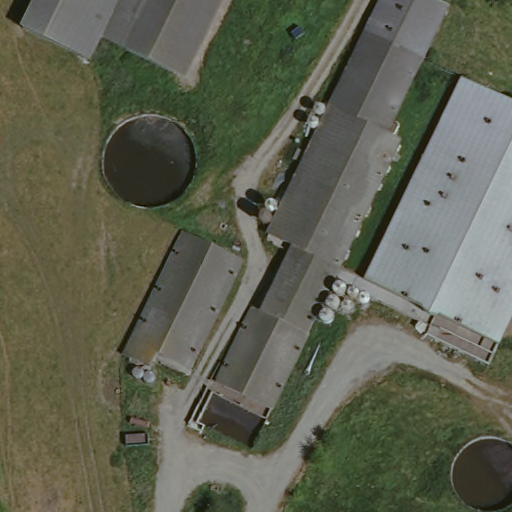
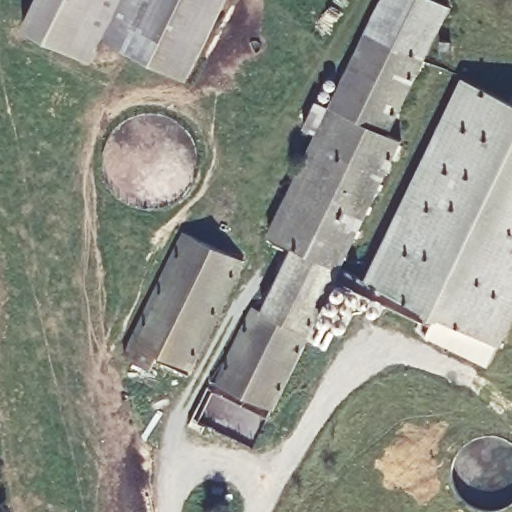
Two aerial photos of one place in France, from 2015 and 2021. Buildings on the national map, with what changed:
unchanged [(107,64),(25,26),(37,0),(139,0),(119,41),(107,64)]
unchanged [(146,55),(119,41),(139,0),(233,0),(194,78),(146,55)]
unchanged [(372,30),(387,0),(446,0),(454,4),(427,57),(390,132),(403,139),(342,263),(341,266),(297,244),(273,232),(372,30)]
unchanged [(468,77),(512,99),(512,318),(500,342),(440,311),(433,324),(336,276),(341,266),(342,263),(369,277),(468,77)]
unchanged [(187,234),(244,262),(191,371),(160,356),(154,366),(128,355),(182,244),(187,234)]
unchanged [(308,331),(264,310),(297,244),(341,266),(336,276),(324,300),(308,331)]
unchanged [(272,403),(219,378),(255,305),(264,310),(308,331),(272,403)]

